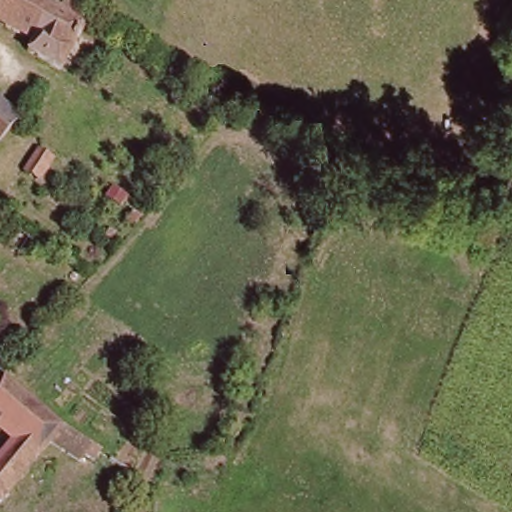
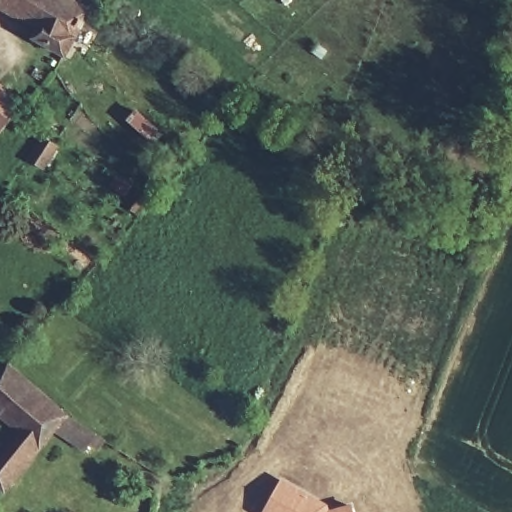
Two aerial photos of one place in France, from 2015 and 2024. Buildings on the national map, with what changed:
unchanged [(46,24),(0,2),(0,0),(105,0),(106,1),(72,54),(41,36),(46,24)]
unchanged [(0,135),(0,81),(28,106),(0,135)]
unchanged [(63,151),(49,173),(28,159),(41,137),(63,151)]
unchanged [(120,235),(105,224),(120,204),(136,215),(120,235)]
unchanged [(68,408),(111,438),(105,447),(96,441),(90,450),(60,430),(10,493),(0,485),(0,459),(21,431),(4,417),(0,423),(0,383),(14,364),(68,408)]
new [(281,477),(322,500),(330,508),(351,503),(353,512),(262,512),(281,477)]

